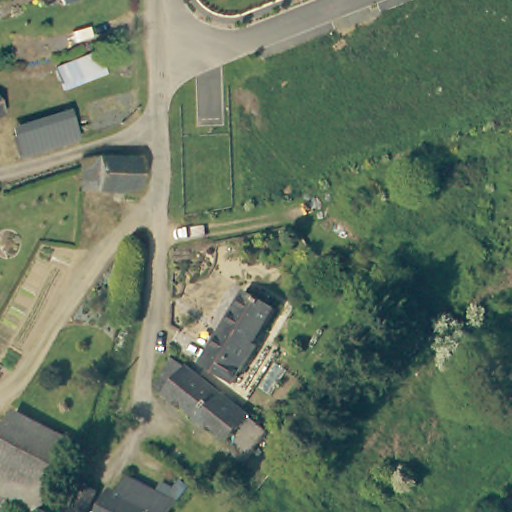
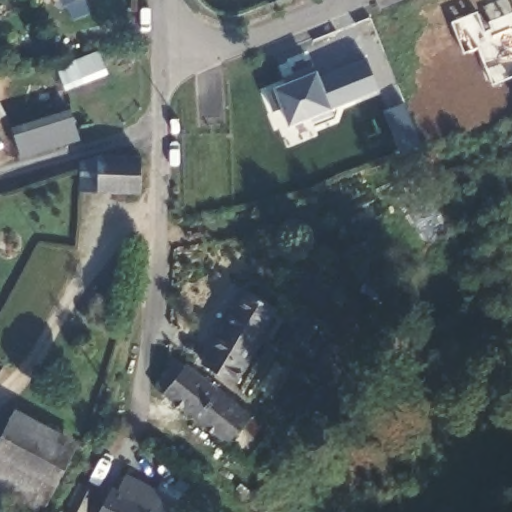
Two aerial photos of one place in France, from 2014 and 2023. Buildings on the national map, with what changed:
unchanged [(65,0),(80,0),(67,5),(65,0)]
unchanged [(107,81),(64,94),(57,70),(100,57),(107,81)]
new [(331,110),(291,126),(282,108),(273,110),(265,90),(275,86),(283,83),(281,76),(315,65),(317,69),(320,77),(367,57),(379,89),(331,110)]
unchanged [(17,153),(9,131),(67,113),(74,135),(17,153)]
unchanged [(68,165),(82,162),(99,156),(141,157),(140,193),(82,191),(67,191),(68,165)]
unchanged [(235,383),(202,364),(246,291),(276,310),(235,383)]
unchanged [(169,362),(169,355),(194,371),(267,430),(272,426),(275,428),(247,461),(154,389),(169,362)]
unchanged [(40,509),(10,493),(0,489),(0,436),(11,415),(72,447),(40,509)]
unchanged [(318,427),(304,448),(287,437),(302,416),(318,427)]
unchanged [(125,476),(176,502),(167,512),(99,512),(104,502),(112,488),(117,491),(125,476)]
unchanged [(85,512),(68,512),(81,485),(95,492),(85,512)]
unchanged [(10,493),(0,511),(0,489),(10,493)]

